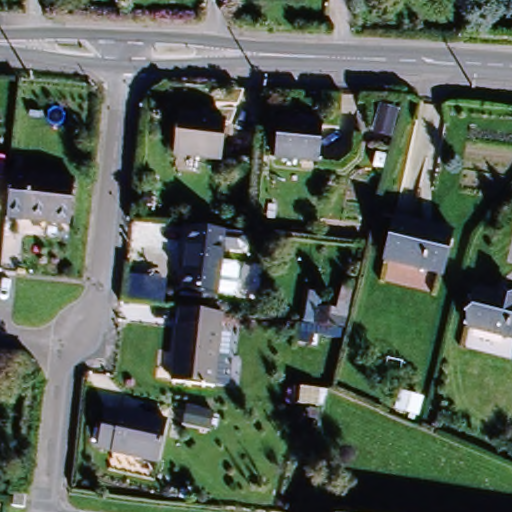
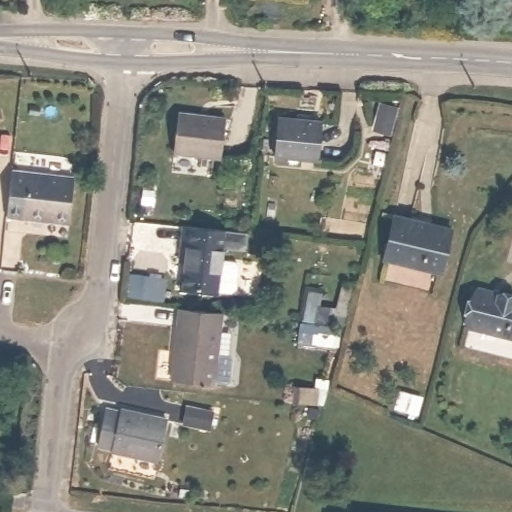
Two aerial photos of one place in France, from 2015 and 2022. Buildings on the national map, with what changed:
unchanged [(171,155),(177,115),(223,121),(216,161),(171,155)]
unchanged [(272,152),(276,116),(318,122),(314,159),(272,152)]
unchanged [(68,176),(63,222),(2,215),(7,169),(68,176)]
unchanged [(379,255),(391,211),(448,226),(436,268),(379,255)]
unchanged [(238,266),(236,288),(221,289),(221,292),(186,288),(188,261),(181,261),(183,239),(182,227),(224,230),(222,262),(238,266)]
unchanged [(475,287),(512,297),(512,338),(465,325),(475,287)]
unchanged [(215,386),(174,382),(178,326),(179,311),(220,313),(219,327),(221,327),(215,386)]
unchanged [(275,406),(275,398),(292,398),(293,407),(275,406)]
unchanged [(167,421),(157,461),(110,451),(112,447),(97,442),(105,410),(118,412),(121,408),(167,421)]

